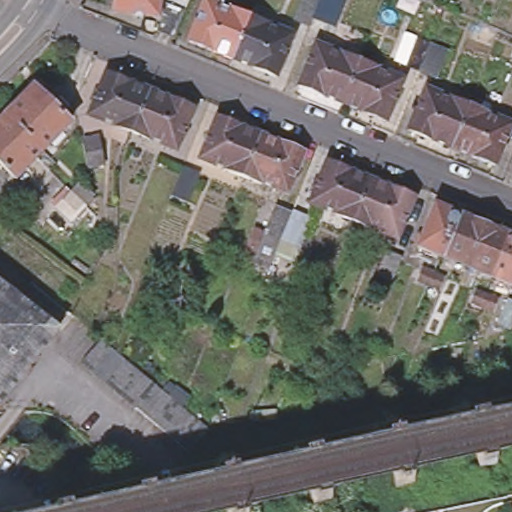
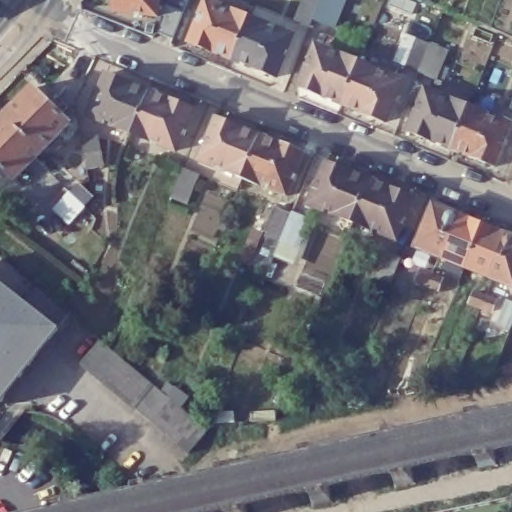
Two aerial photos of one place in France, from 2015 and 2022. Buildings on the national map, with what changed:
unchanged [(159,18),(113,10),(115,0),(160,0),(159,3),(162,4),(189,13),(178,41),(162,34),(168,21),(159,18)]
unchanged [(233,60),(190,42),(208,0),(212,0),(221,4),(221,6),(251,17),(233,60)]
unchanged [(337,23),(316,14),(313,22),(297,15),(303,0),(347,0),(337,23)]
unchanged [(251,17),(268,23),(269,26),(283,31),(285,30),(295,34),(277,78),(233,60),(251,17)]
unchanged [(407,80),(389,123),(344,105),(301,88),(320,45),(344,56),(346,56),(362,62),(367,51),(358,47),(363,35),(372,39),(368,49),(376,52),(369,65),(383,73),(407,80)]
unchanged [(422,73),(404,66),(417,38),(433,45),(450,52),(439,79),(422,73)]
unchanged [(108,123),(107,119),(98,116),(96,118),(83,112),(101,70),(123,79),(122,80),(142,87),(125,129),(108,123)]
unchanged [(444,95),(449,95),(466,101),(449,144),(406,127),(424,85),(436,90),(437,92),(444,95)]
unchanged [(146,136),(144,137),(125,129),(142,87),(186,104),(169,147),(157,142),(156,138),(146,136)]
unchanged [(71,124),(45,151),(8,117),(35,89),(71,124)]
unchanged [(484,108),(486,111),(497,117),(500,117),(510,120),(492,162),(449,144),(466,101),(484,108)]
unchanged [(216,167),(216,164),(208,161),(204,162),(193,157),(211,114),(232,123),(234,125),(253,132),(234,174),(216,167)]
unchanged [(17,180),(0,164),(0,126),(8,117),(45,151),(17,180)]
unchanged [(250,180),(234,174),(253,132),(296,148),(279,192),(266,187),(266,184),(250,180)]
unchanged [(83,140),(99,137),(105,165),(89,168),(83,140)]
unchanged [(350,220),(334,215),(334,211),(324,206),(321,208),(308,203),(326,159),(348,168),(349,170),(367,177),(350,220)]
unchanged [(184,170),(201,177),(191,205),(173,197),(184,170)]
unchanged [(370,226),(368,227),(350,220),(367,177),(411,194),(393,237),(381,232),(380,229),(370,226)]
unchanged [(64,204),(73,195),(81,186),(95,198),(85,207),(77,216),(64,204)]
unchanged [(417,241),(434,198),(453,206),(444,226),(454,232),(445,253),(439,250),(417,241)]
unchanged [(454,232),(444,226),(453,206),(482,218),(464,261),(445,253),(454,232)]
unchanged [(279,212),(296,218),(314,226),(303,252),(297,267),(274,257),(269,267),(243,256),(254,228),(271,234),(279,212)]
unchanged [(491,252),(484,269),(464,261),(482,218),(512,230),(504,247),(491,252)]
unchanged [(484,269),(491,252),(504,247),(512,230),(512,281),(491,272),(484,269)]
unchanged [(394,284),(379,278),(389,254),(404,260),(411,263),(401,287),(394,284)]
unchanged [(430,288),(422,284),(426,273),(436,277),(445,281),(439,292),(430,288)]
unchanged [(11,283),(54,319),(43,333),(44,335),(0,394),(0,274),(11,283)]
unchanged [(489,298),(500,303),(496,315),(484,310),(475,306),(481,295),(489,298)]
unchanged [(74,354),(93,332),(96,334),(109,346),(151,380),(200,421),(189,433),(181,443),(172,436),(74,354)]

